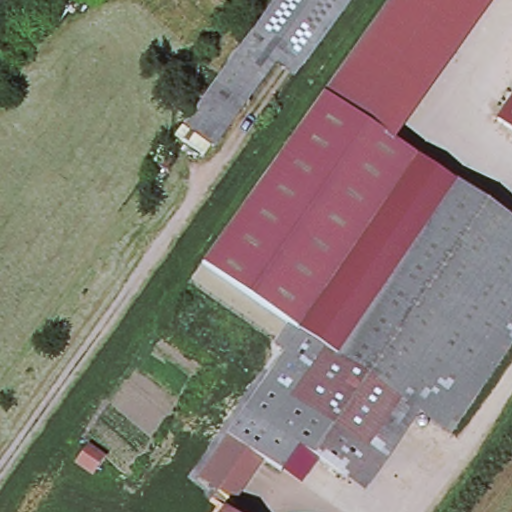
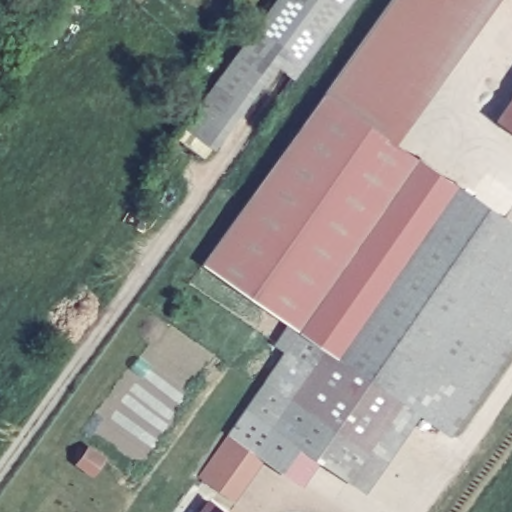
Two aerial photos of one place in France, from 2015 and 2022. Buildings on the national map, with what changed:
unchanged [(445,170),(312,363),(287,346),(276,338),(287,323),(201,266),(391,0),(500,0),(402,136),(445,170)]
unchanged [(210,87),(273,0),(313,0),(236,106),(210,87)]
unchanged [(250,96),(240,110),(236,106),(313,0),(350,0),(300,69),(280,54),(250,96)]
unchanged [(210,87),(236,106),(240,110),(211,150),(194,135),(164,175),(154,166),(210,87)]
unchanged [(495,125),(512,98),(512,135),(495,125)]
unchanged [(287,346),(312,363),(445,170),(512,216),(512,341),(451,430),(402,396),(348,474),(299,440),(246,404),(287,346)]
unchanged [(246,404),(299,440),(281,466),(262,453),(229,429),(246,404)]
unchanged [(262,453),(235,494),(200,470),(229,429),(262,453)]

